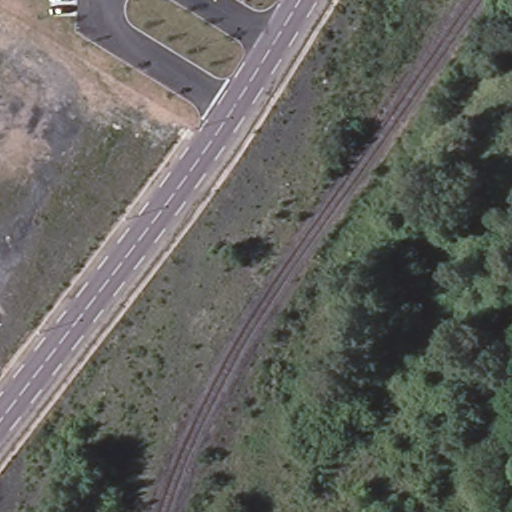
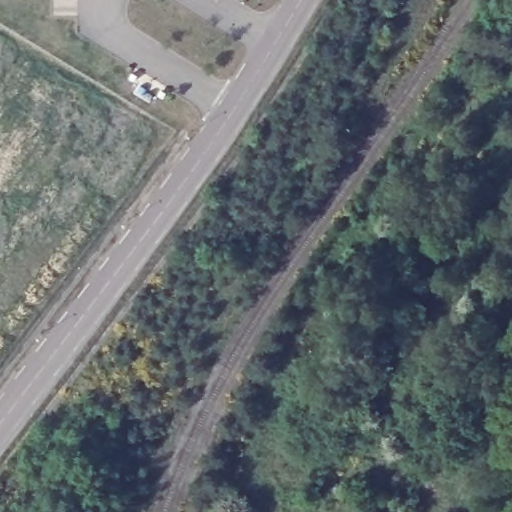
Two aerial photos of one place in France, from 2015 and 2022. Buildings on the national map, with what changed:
[]

